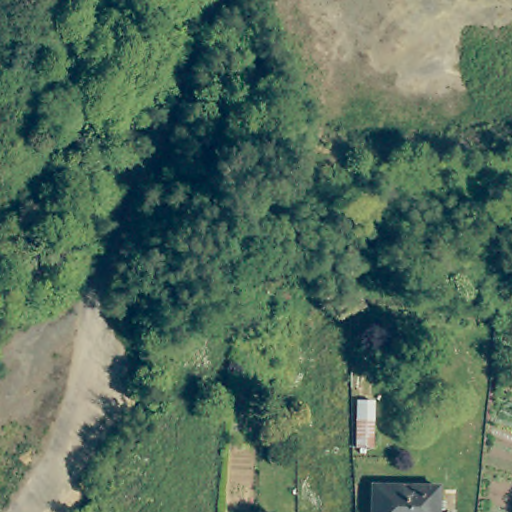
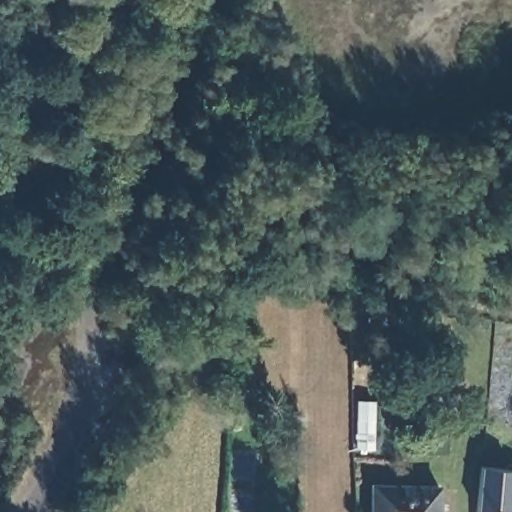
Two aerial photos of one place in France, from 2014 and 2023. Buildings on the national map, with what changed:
unchanged [(359,405),(361,403),(375,403),(373,448),(357,448),(359,405)]
new [(482,465),(512,469),(512,496),(510,512),(477,512),(482,465)]
unchanged [(373,485),(439,486),(438,509),(432,509),(432,512),(373,512),(373,485)]

